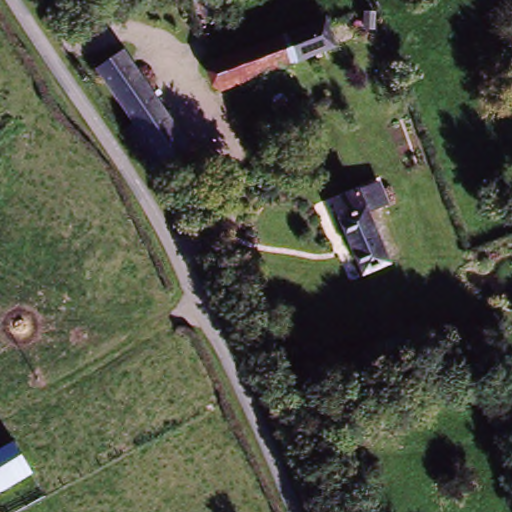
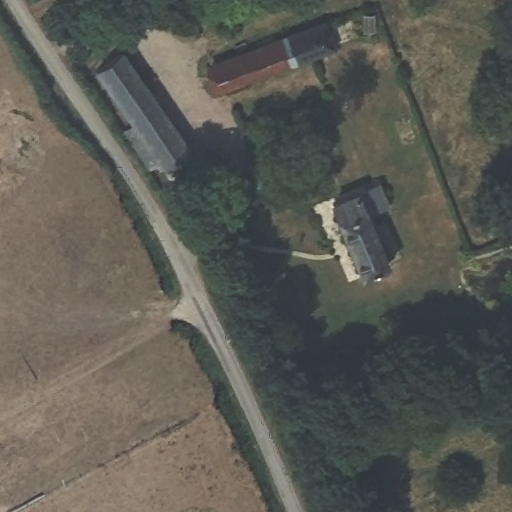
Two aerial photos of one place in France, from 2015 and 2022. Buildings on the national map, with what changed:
unchanged [(336,47),(324,22),(333,17),(344,44),(336,47)]
unchanged [(330,51),(220,94),(210,67),(319,24),(330,51)]
unchanged [(171,169),(109,77),(118,71),(112,61),(127,52),(133,62),(194,153),(171,169)]
unchanged [(358,275),(330,201),(355,191),(372,184),(380,204),(363,211),(384,265),(358,275)]
demolished [(20,442),(36,473),(1,492),(0,492),(0,453),(20,442)]

